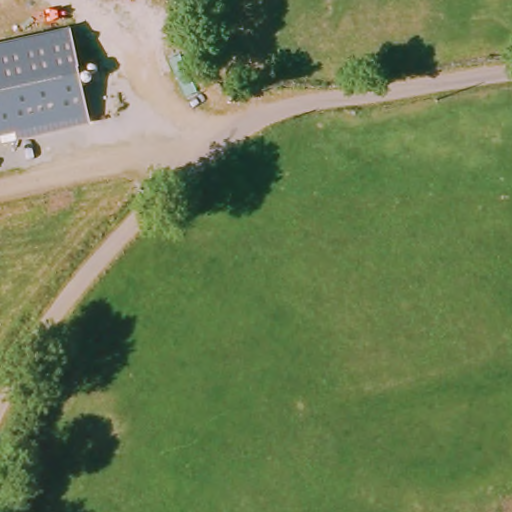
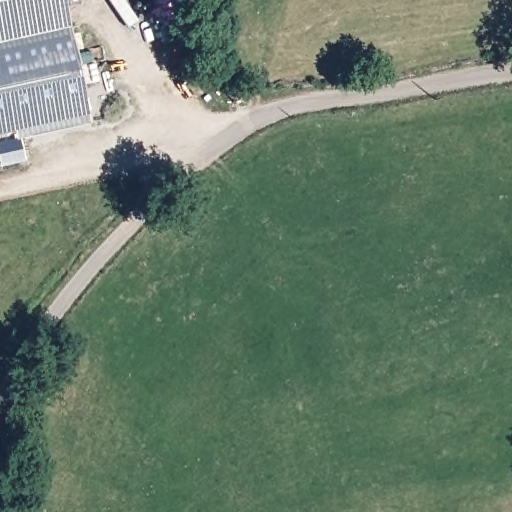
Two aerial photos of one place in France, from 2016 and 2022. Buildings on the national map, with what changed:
new [(0,0),(72,0),(62,3),(70,31),(0,46),(0,0)]
unchanged [(90,126),(18,141),(17,135),(0,138),(0,47),(73,31),(90,126)]
new [(23,161),(0,166),(0,165),(0,145),(18,141),(23,161)]

